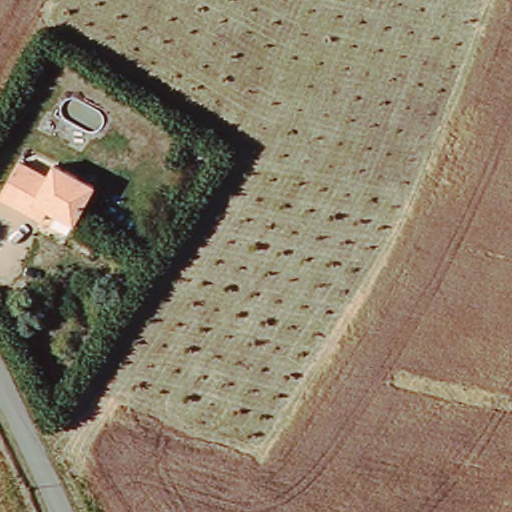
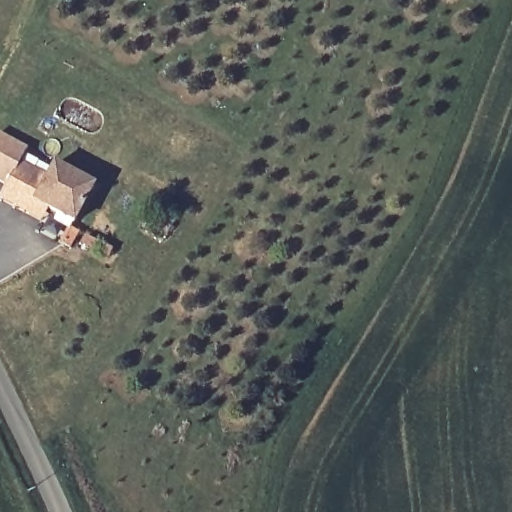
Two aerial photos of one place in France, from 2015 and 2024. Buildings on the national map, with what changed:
new [(20,163),(9,184),(0,179),(0,132),(29,148),(20,163)]
unchanged [(30,216),(0,201),(20,163),(49,178),(57,165),(95,186),(74,223),(51,211),(42,224),(30,216)]

